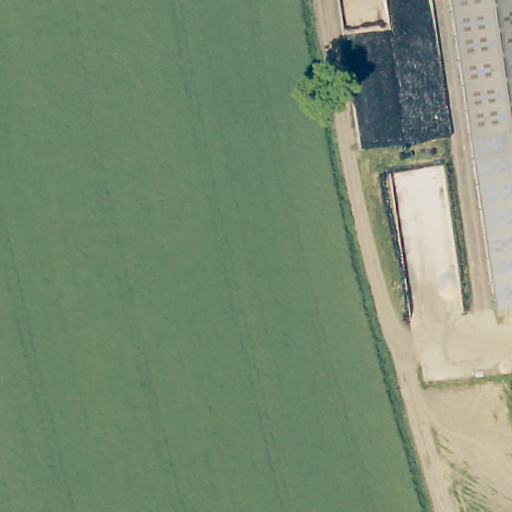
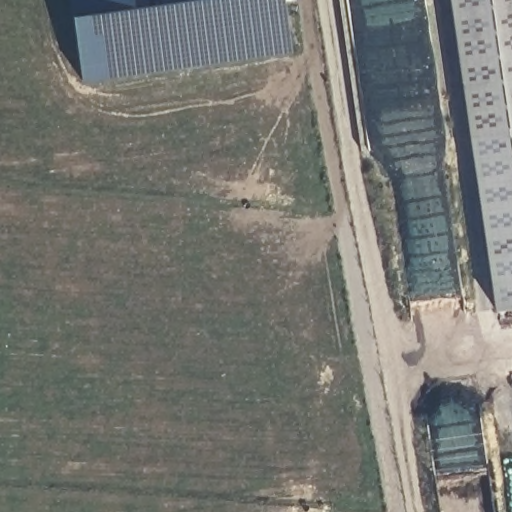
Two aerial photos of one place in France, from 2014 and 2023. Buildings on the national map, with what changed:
new [(307,68),(79,102),(68,0),(302,0),(307,68)]
unchanged [(497,294),(453,0),(512,0),(512,292),(497,294)]

